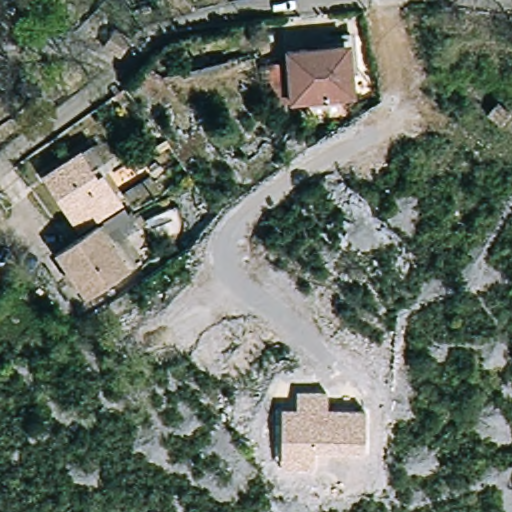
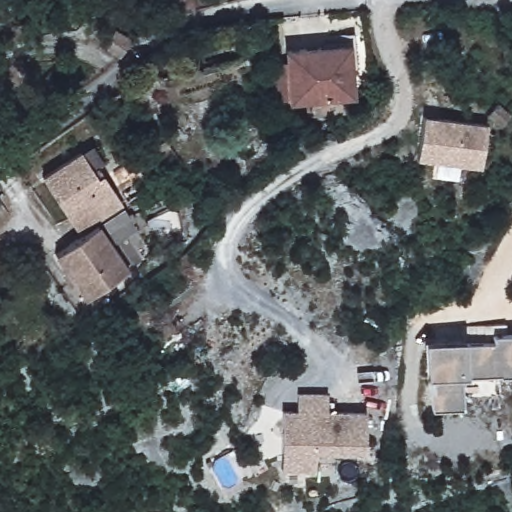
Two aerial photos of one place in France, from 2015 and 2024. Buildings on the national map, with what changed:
unchanged [(110,30),(127,40),(114,58),(98,49),(110,30)]
unchanged [(347,45),(353,95),(290,104),(286,52),(347,45)]
unchanged [(494,102),(507,113),(497,124),(483,115),(494,102)]
new [(423,115),(487,123),(480,169),(417,160),(423,115)]
unchanged [(78,146),(93,172),(100,168),(122,205),(76,232),(40,169),(78,146)]
unchanged [(97,226),(122,256),(82,289),(57,258),(97,226)]
new [(464,341),(491,340),(490,333),(512,332),(512,374),(500,375),(499,372),(467,374),(467,376),(460,377),(462,408),(433,410),(430,377),(426,377),(424,343),(464,339),(464,341)]
unchanged [(280,468),(279,409),(297,409),(296,392),(327,392),(327,409),(366,410),(366,454),(314,454),(314,470),(280,468)]

